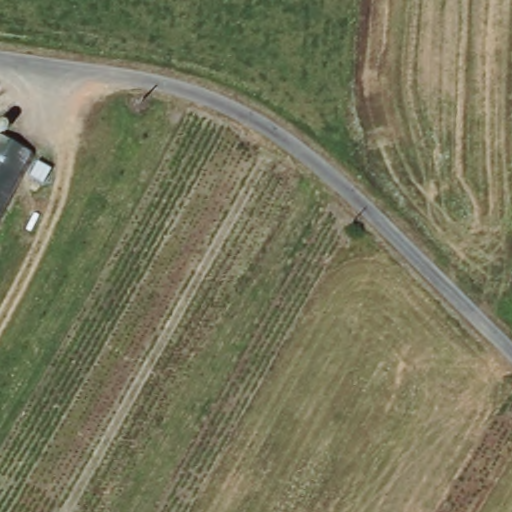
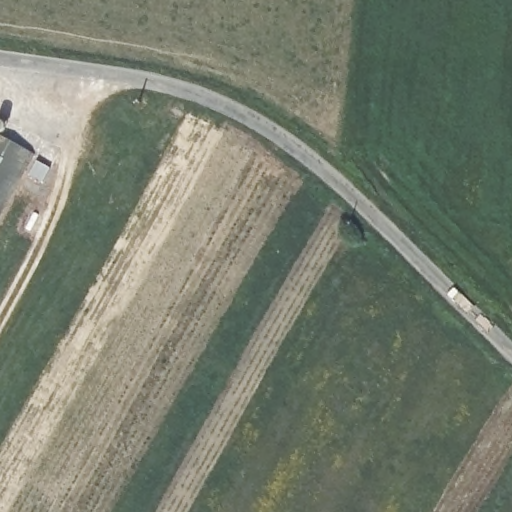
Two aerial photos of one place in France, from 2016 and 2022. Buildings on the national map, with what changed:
unchanged [(12,140),(0,161),(0,133),(12,140)]
unchanged [(37,154),(0,220),(0,161),(12,140),(37,154)]

